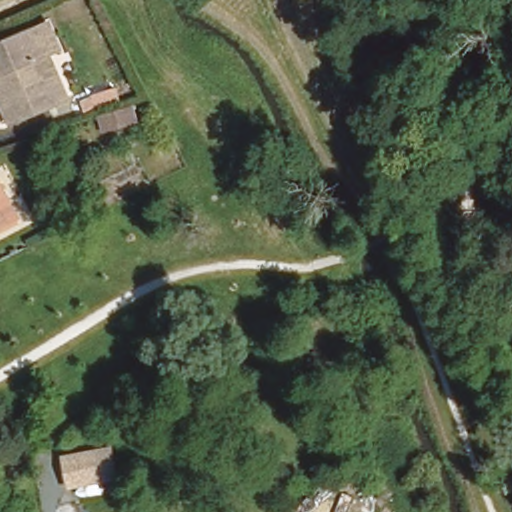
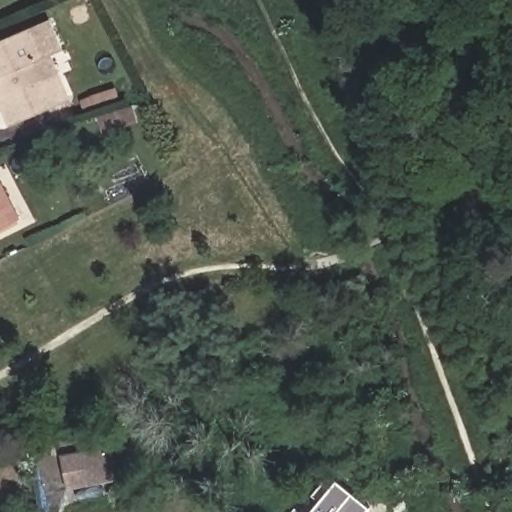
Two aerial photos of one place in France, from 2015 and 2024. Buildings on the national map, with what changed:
unchanged [(58,105),(17,124),(0,85),(0,45),(34,29),(48,58),(39,61),(48,81),(63,75),(74,98),(58,105)]
unchanged [(105,138),(90,98),(121,89),(125,104),(134,101),(143,125),(105,138)]
unchanged [(0,227),(0,182),(19,217),(0,227)]
unchanged [(67,493),(59,455),(116,446),(119,484),(67,493)]
new [(370,506),(366,512),(311,512),(319,500),(312,495),(327,478),(334,484),(338,480),(370,506)]

